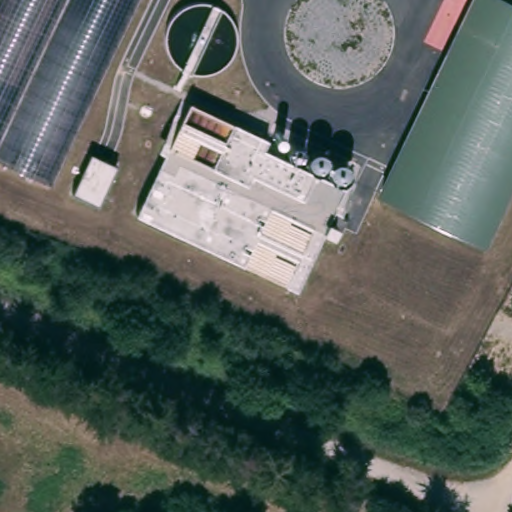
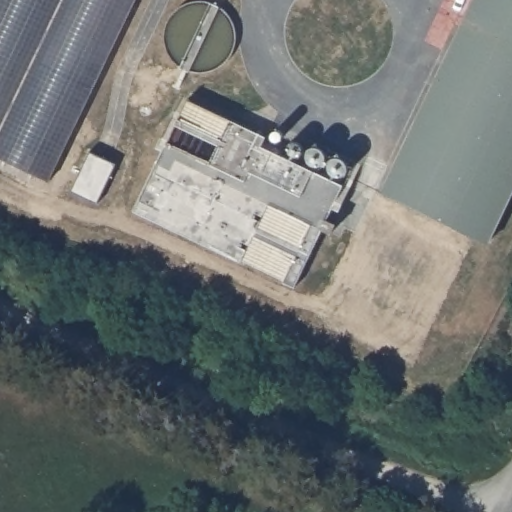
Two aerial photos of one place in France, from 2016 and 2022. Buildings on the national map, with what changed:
unchanged [(50,180),(0,158),(0,0),(129,0),(50,180)]
unchanged [(490,243),(380,191),(471,0),(512,0),(512,196),(490,243)]
unchanged [(189,101),(347,180),(296,285),(135,212),(189,101)]
unchanged [(115,163),(96,202),(72,190),(90,152),(115,163)]

